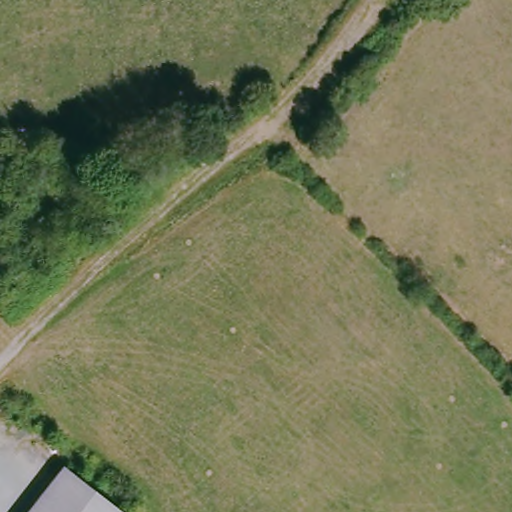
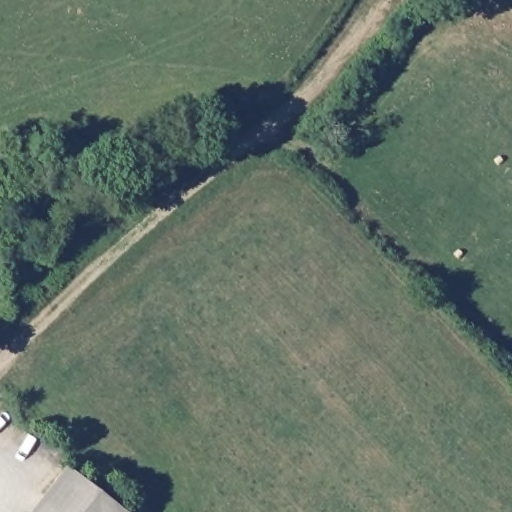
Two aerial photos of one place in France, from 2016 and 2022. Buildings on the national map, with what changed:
unchanged [(74,471),(119,512),(39,512),(74,471)]

